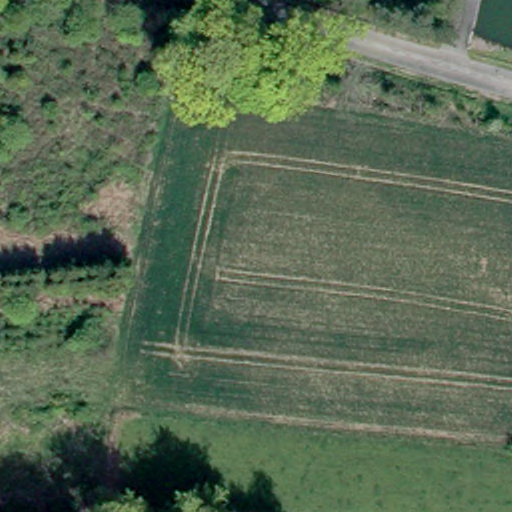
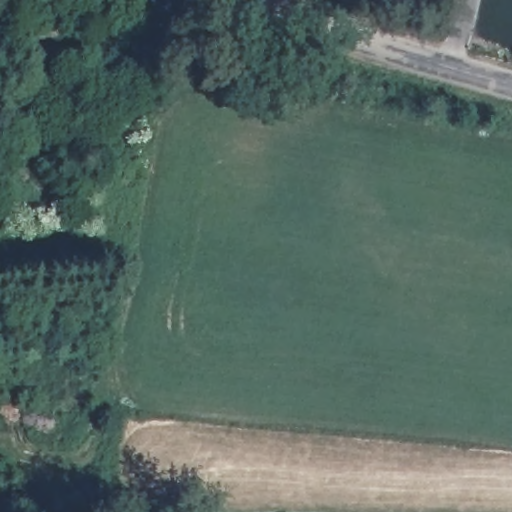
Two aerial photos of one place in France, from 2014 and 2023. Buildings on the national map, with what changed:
[]

